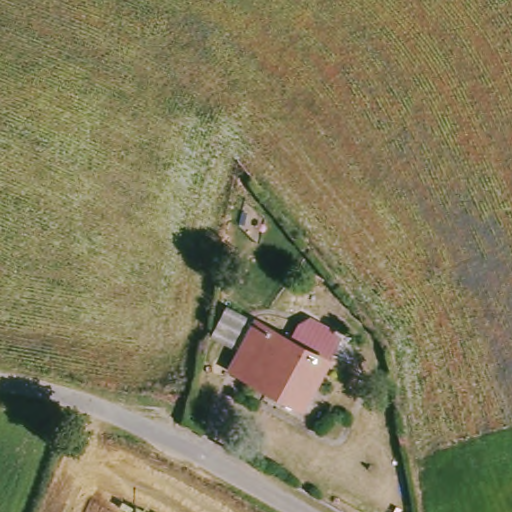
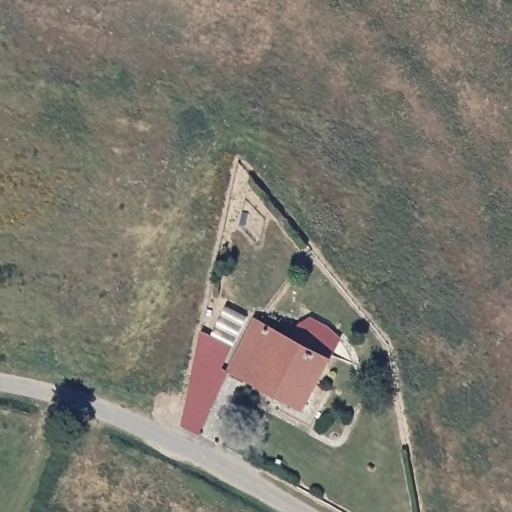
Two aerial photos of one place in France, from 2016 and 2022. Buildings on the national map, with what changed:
new [(210,335),(227,306),(249,317),(222,369),(227,372),(200,433),(182,425),(202,330),(210,335)]
unchanged [(304,405),(231,374),(252,326),(325,356),(304,405)]

